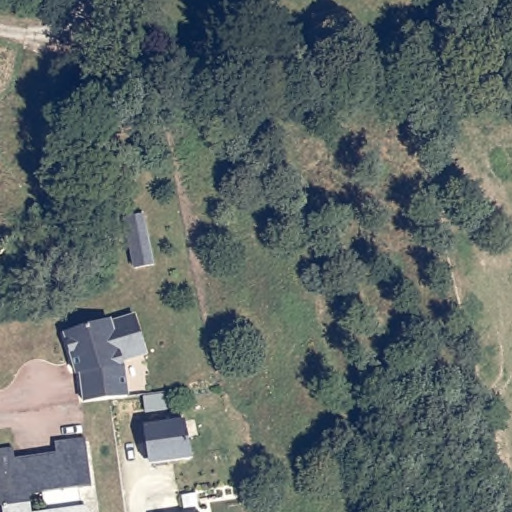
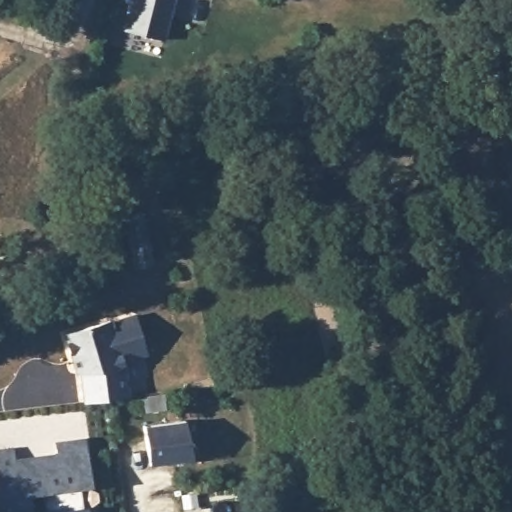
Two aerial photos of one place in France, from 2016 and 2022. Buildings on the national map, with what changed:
new [(174,0),(164,39),(121,29),(129,0),(174,0)]
unchanged [(145,220),(154,269),(134,273),(124,224),(145,220)]
unchanged [(106,320),(106,322),(116,320),(130,315),(141,354),(119,360),(117,360),(118,361),(119,367),(123,397),(79,402),(76,375),(76,372),(72,358),(68,360),(61,332),(106,320)]
unchanged [(148,464),(144,427),(188,421),(192,460),(149,465),(148,464)]
unchanged [(61,460),(60,449),(90,445),(95,490),(84,492),(86,512),(71,512),(51,461),(61,460)]
unchanged [(8,511),(2,512),(0,496),(0,457),(18,455),(19,466),(34,464),(51,461),(71,512),(46,512),(44,495),(30,497),(32,512),(8,512),(8,511)]

